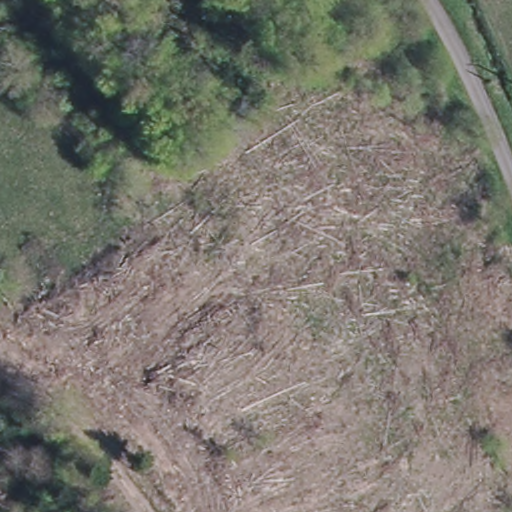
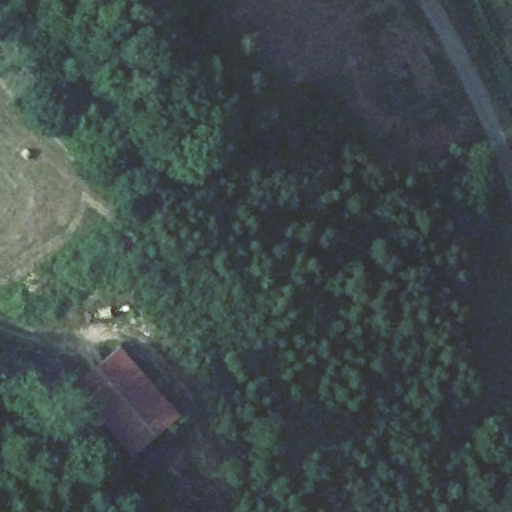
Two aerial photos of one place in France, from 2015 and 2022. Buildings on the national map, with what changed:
new [(180,416),(133,457),(73,389),(120,348),(180,416)]

